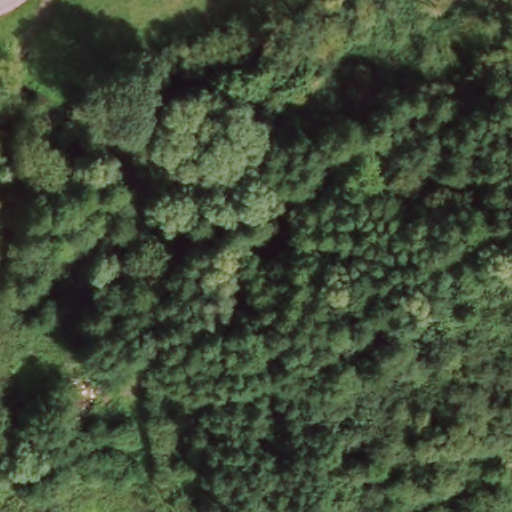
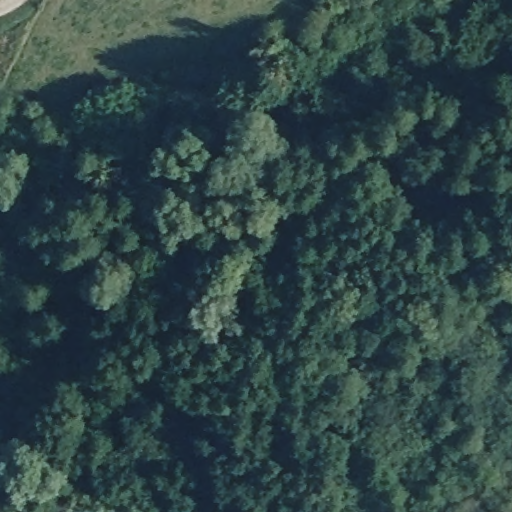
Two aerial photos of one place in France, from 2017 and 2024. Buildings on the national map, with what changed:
unchanged [(73,422),(64,362),(93,360),(99,417),(73,422)]

